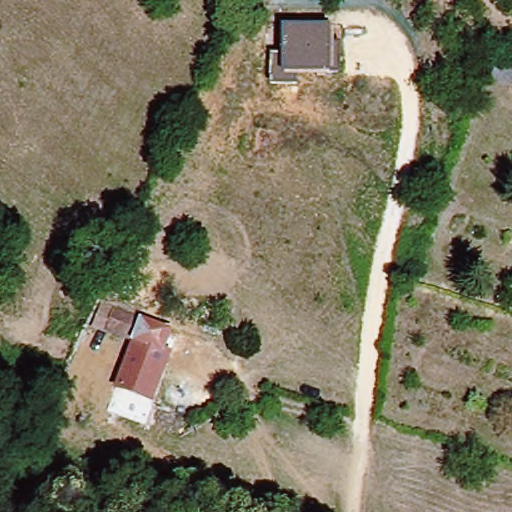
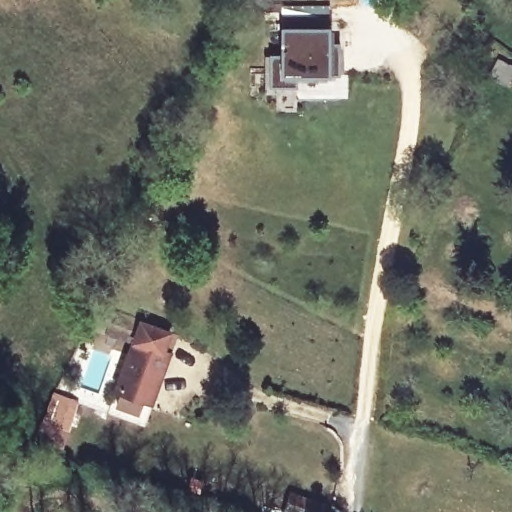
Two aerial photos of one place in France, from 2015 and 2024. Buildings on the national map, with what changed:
unchanged [(270,55),(281,54),(281,27),(333,28),(332,77),(298,76),(297,87),(268,87),(270,55)]
unchanged [(512,67),(512,73),(506,84),(491,76),(500,60),(512,67)]
unchanged [(100,328),(107,308),(175,332),(167,352),(174,355),(156,402),(122,390),(140,343),(100,328)]
new [(37,439),(53,390),(81,398),(65,448),(37,439)]

